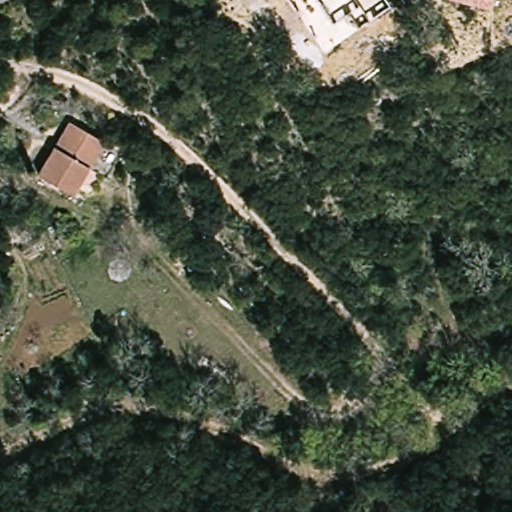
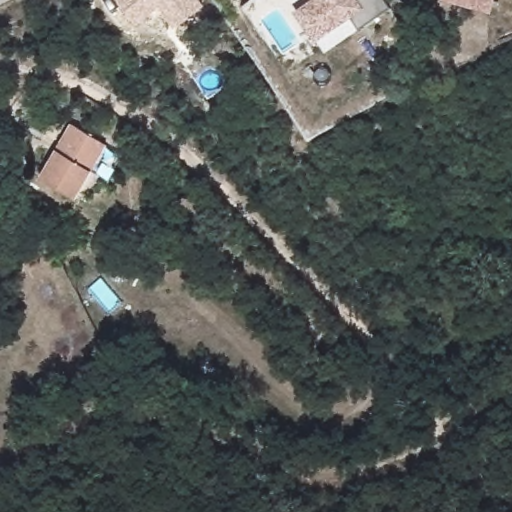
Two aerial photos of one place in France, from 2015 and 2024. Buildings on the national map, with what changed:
new [(173,27),(158,5),(134,22),(120,0),(200,0),(204,6),(173,27)]
new [(359,28),(351,17),(314,41),(292,10),(306,0),(383,0),(388,7),(359,28)]
unchanged [(447,0),(493,0),(490,12),(447,0)]
unchanged [(44,177),(70,127),(98,139),(107,142),(94,167),(81,193),(44,177)]

